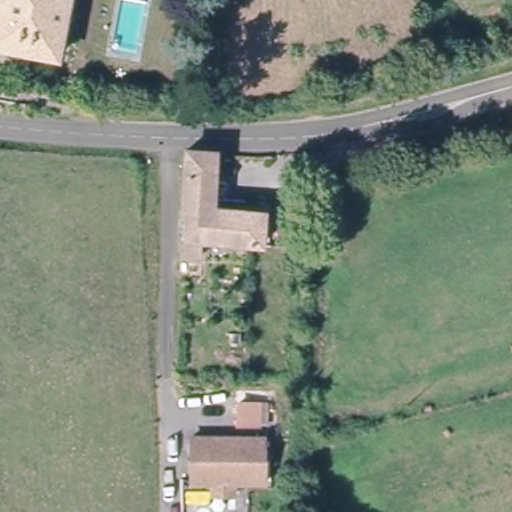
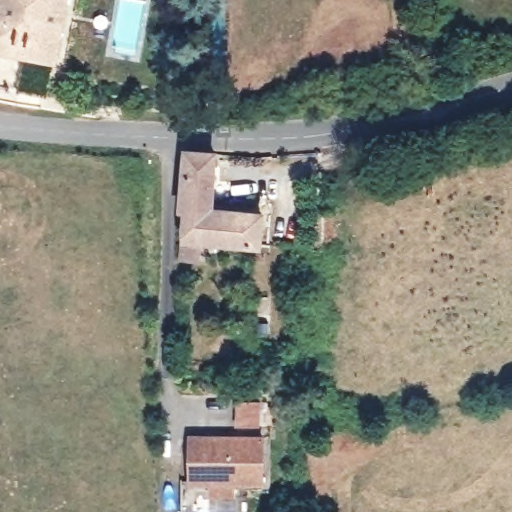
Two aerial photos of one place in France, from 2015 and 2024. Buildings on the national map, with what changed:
unchanged [(0,46),(0,0),(68,0),(59,59),(0,46)]
unchanged [(218,204),(267,205),(267,241),(203,240),(203,250),(186,249),(188,206),(183,206),(186,145),(220,146),(218,204)]
unchanged [(261,426),(238,425),(240,403),(262,406),(261,426)]
unchanged [(212,498),(213,485),(202,485),(189,485),(190,440),(198,440),(263,442),(261,486),(232,486),(232,498),(212,498)]

